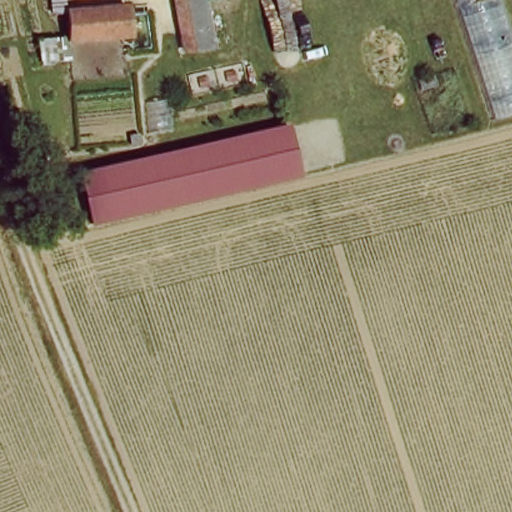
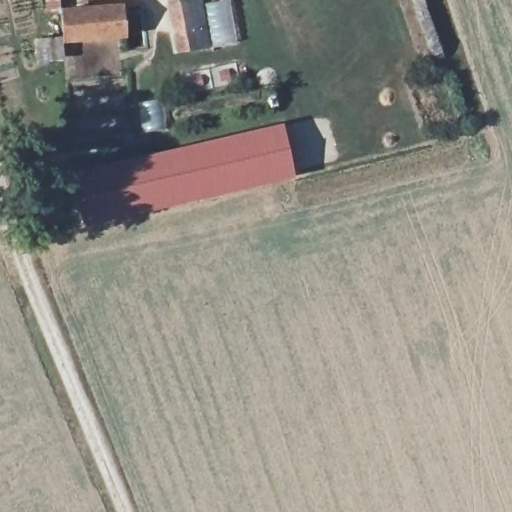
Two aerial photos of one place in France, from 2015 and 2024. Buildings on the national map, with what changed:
unchanged [(213,45),(179,50),(170,0),(206,0),(213,45)]
demolished [(512,113),(482,122),(445,0),(492,0),(512,63),(512,113)]
unchanged [(60,46),(58,9),(123,4),(125,41),(60,46)]
unchanged [(289,178),(193,200),(184,202),(172,149),(172,147),(275,122),(289,178)]
unchanged [(175,204),(82,227),(69,175),(172,149),(184,202),(175,204)]

